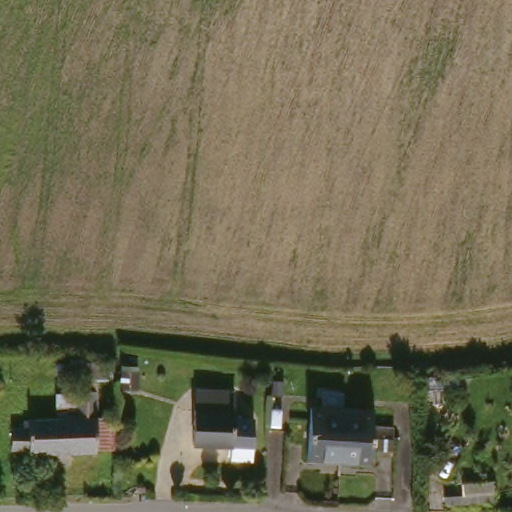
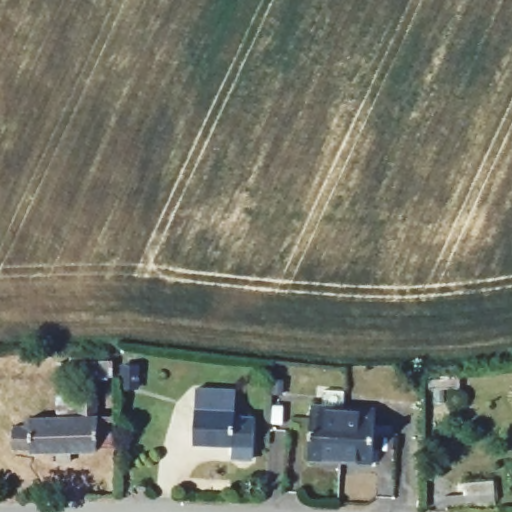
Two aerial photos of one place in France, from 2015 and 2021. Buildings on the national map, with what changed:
unchanged [(200,440),(202,404),(202,383),(241,385),(241,406),(239,441),(200,440)]
unchanged [(117,446),(102,446),(102,451),(33,453),(33,450),(17,450),(16,426),(27,425),(27,421),(35,421),(35,418),(82,417),(82,389),(102,388),(102,417),(117,416),(117,446)]
unchanged [(345,462),(313,460),(315,431),(315,420),(316,404),(347,405),(381,407),(380,423),(380,435),(378,463),(345,462)]
unchanged [(494,491),(495,500),(446,504),(445,495),(494,491)]

